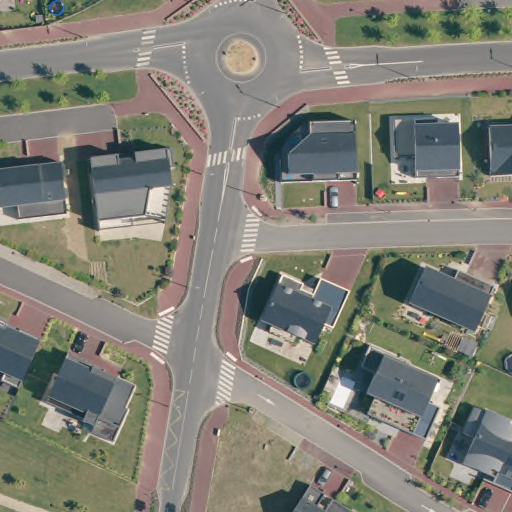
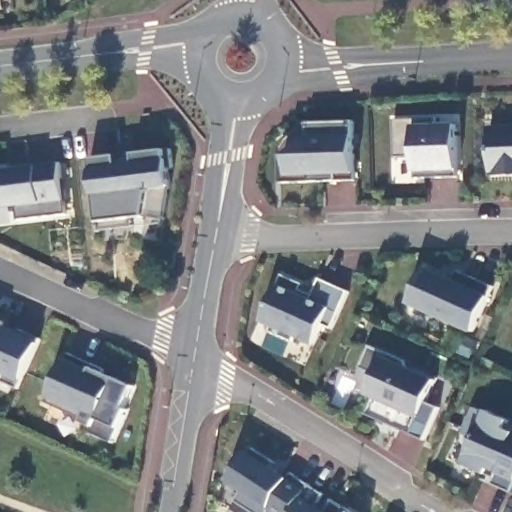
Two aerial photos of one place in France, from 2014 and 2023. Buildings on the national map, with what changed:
unchanged [(436,119),(437,126),(457,126),(458,169),(458,177),(416,179),(416,172),(415,155),(394,155),(393,120),(436,119)]
unchanged [(354,123),(354,134),(355,174),(355,180),(338,181),(312,182),(281,182),(280,144),(310,123),(354,123)]
unchanged [(512,177),(492,177),(490,129),(512,128),(512,177)]
unchanged [(173,150),(175,169),(170,170),(172,187),(166,225),(165,225),(166,221),(146,217),(133,219),(133,222),(101,227),(101,232),(100,232),(91,160),(173,150)]
unchanged [(11,169),(62,163),(68,215),(19,221),(18,207),(0,209),(0,170),(11,169)]
unchanged [(454,282),(458,272),(495,287),(474,332),(410,303),(425,269),(454,282)]
unchanged [(282,276),(302,285),(300,290),(312,295),(319,280),(348,292),(333,328),(324,325),(315,346),(261,321),(278,285),(282,276)]
unchanged [(6,323),(4,328),(18,335),(20,330),(42,340),(20,390),(2,382),(6,372),(0,370),(0,321),(6,323)]
unchanged [(406,362),(409,368),(438,382),(428,403),(441,408),(426,442),(399,429),(401,424),(391,420),(384,422),(368,415),(375,398),(368,395),(376,376),(361,368),(370,346),(406,362)]
unchanged [(129,411),(114,443),(92,433),(95,427),(83,422),(84,420),(47,403),(69,353),(106,371),(105,373),(136,387),(126,409),(129,411)]
unchanged [(508,422),(507,425),(512,427),(512,492),(493,485),(495,478),(487,475),(465,463),(469,451),(473,440),(462,435),(472,407),(485,412),(508,422)]
new [(235,501),(242,490),(228,482),(247,452),(249,449),(272,463),(270,467),(287,478),(290,473),(311,486),(300,502),(293,512),(253,512),(235,501)]
unchanged [(300,502),(311,486),(326,495),(318,507),(326,512),(294,512),(300,502)]
unchanged [(333,500),(353,512),(326,512),(333,500)]

